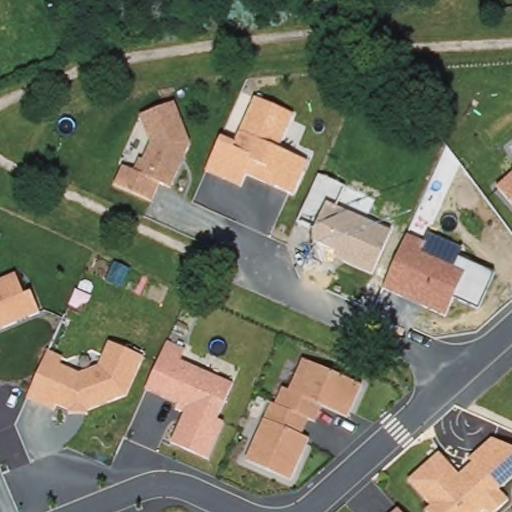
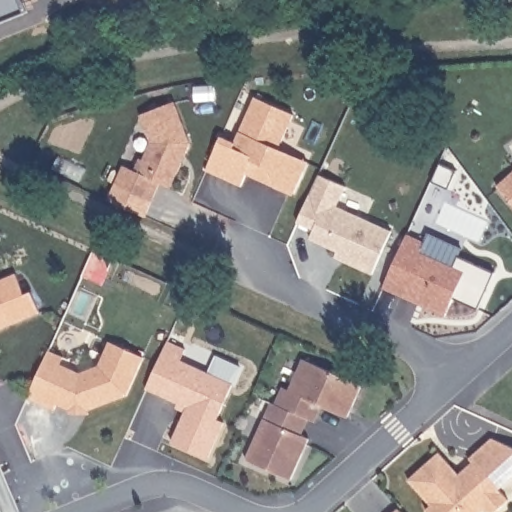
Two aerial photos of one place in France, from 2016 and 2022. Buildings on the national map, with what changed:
new [(0,23),(0,0),(21,0),(26,12),(0,23)]
unchanged [(295,114),(279,150),(309,162),(296,195),(248,176),(243,186),(205,170),(221,136),(234,142),(255,96),(295,114)]
unchanged [(121,170),(134,173),(151,145),(140,119),(174,108),(189,146),(174,192),(159,184),(152,204),(113,189),(121,170)]
unchanged [(496,190),(512,176),(512,209),(496,190)]
unchanged [(394,231),(377,275),(334,257),(337,252),(310,239),(328,200),(394,231)]
unchanged [(427,240),(423,252),(455,267),(459,258),(496,275),(480,310),(455,298),(447,315),(382,287),(408,231),(427,240)]
unchanged [(23,297),(32,293),(41,315),(0,332),(0,280),(13,275),(23,297)]
unchanged [(143,361),(126,399),(83,419),(28,403),(48,352),(63,359),(59,366),(80,375),(98,368),(108,346),(143,361)]
unchanged [(187,351),(182,363),(232,388),(218,422),(224,426),(206,463),(169,444),(183,413),(173,410),(175,404),(145,393),(166,346),(187,351)]
unchanged [(365,383),(349,421),(322,409),(315,425),(310,423),(302,440),(310,442),(291,484),(245,463),(283,390),(289,393),(302,362),(365,383)]
unchanged [(432,509),(409,484),(439,457),(459,479),(473,466),(470,462),(492,442),(499,445),(512,451),(512,481),(499,493),(509,503),(499,512),(485,512),(485,511),(484,512),(429,512),(432,509)]
unchanged [(398,511),(398,512),(397,512),(398,511)]

